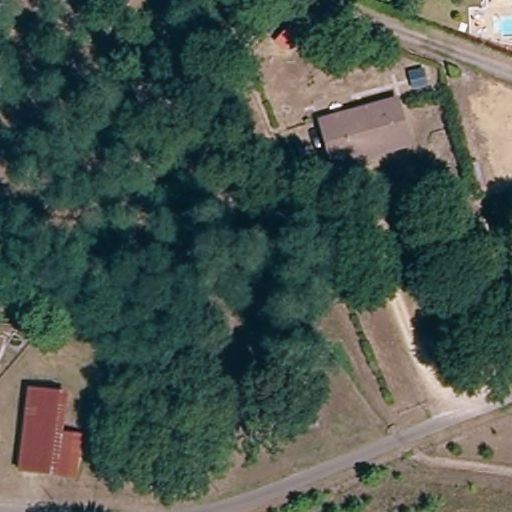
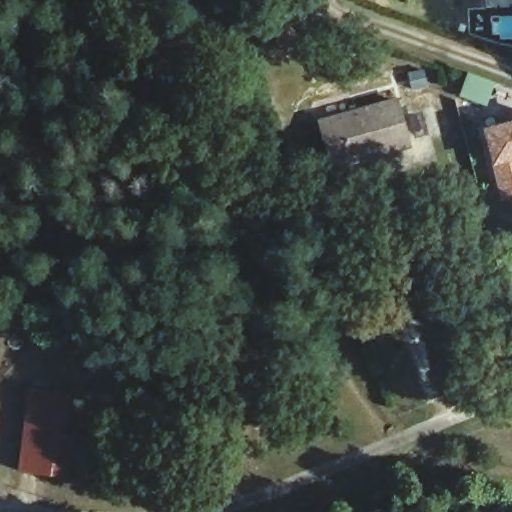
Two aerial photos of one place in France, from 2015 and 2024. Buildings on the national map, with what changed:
unchanged [(397,107),(408,151),(335,172),(322,128),(397,107)]
new [(483,126),(512,120),(512,198),(501,200),(483,126)]
unchanged [(27,396),(64,401),(59,440),(79,443),(73,484),(18,478),(27,396)]

